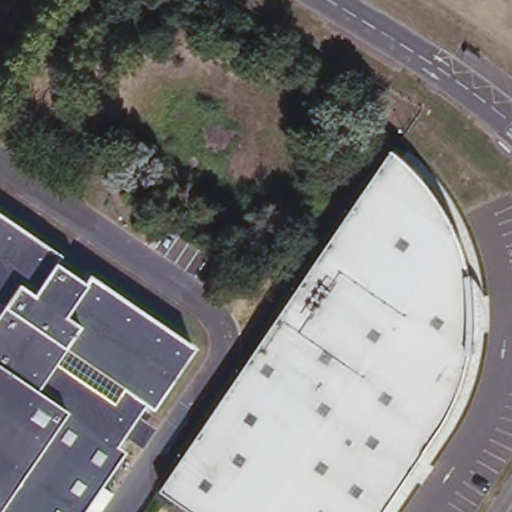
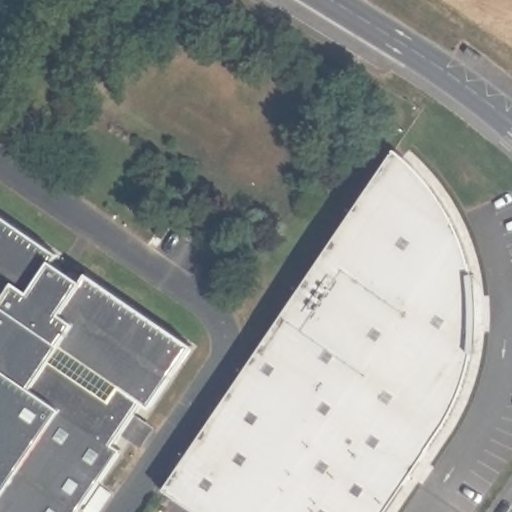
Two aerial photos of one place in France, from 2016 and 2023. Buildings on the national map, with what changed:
unchanged [(432,180),(444,196),(454,213),(461,229),(467,243),(472,259),(473,263),(475,269),(476,269),(477,282),(480,297),(479,318),(479,333),(477,346),(475,346),(470,365),(469,372),(465,385),(459,399),(453,412),(448,421),(384,512),(205,512),(165,485),(397,145),(408,156),(420,168),(432,180)]
unchanged [(59,255),(53,263),(79,281),(85,274),(192,346),(148,412),(141,407),(137,416),(154,427),(140,450),(129,444),(82,512),(0,512),(0,216),(59,255)]

